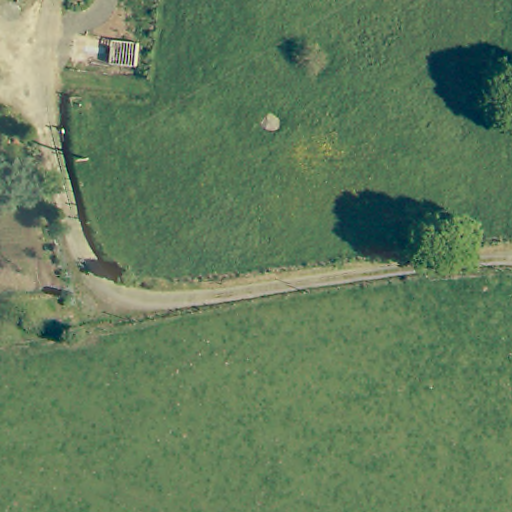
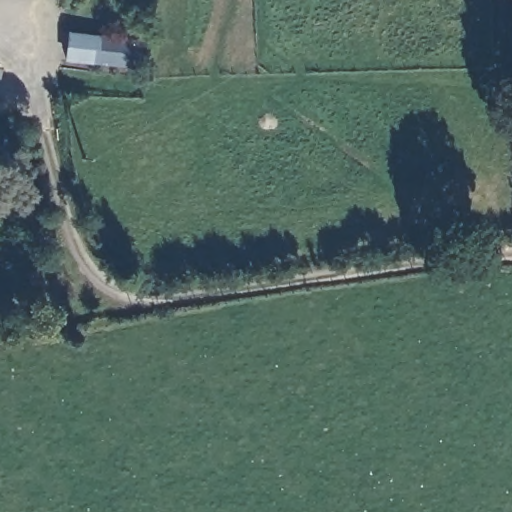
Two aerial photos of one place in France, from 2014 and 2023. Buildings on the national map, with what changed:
new [(133,69),(87,64),(88,61),(68,59),(66,46),(68,33),(136,40),(133,69)]
demolished [(131,75),(123,75),(106,74),(108,36),(125,38),(133,38),(131,75)]

